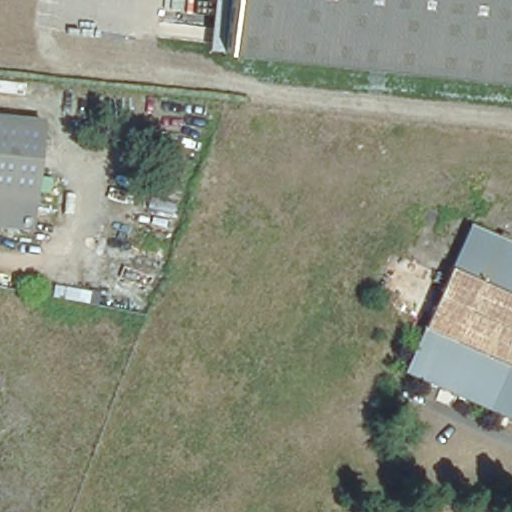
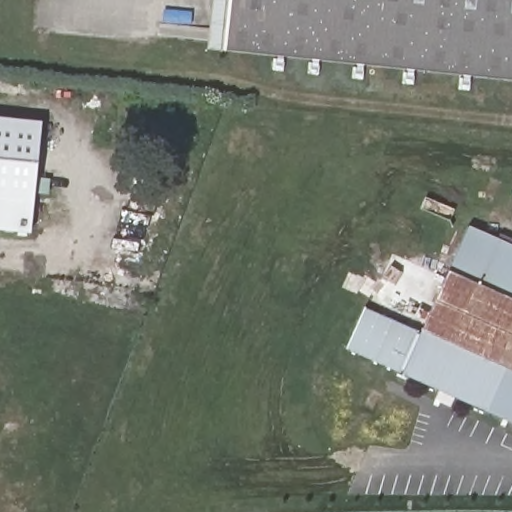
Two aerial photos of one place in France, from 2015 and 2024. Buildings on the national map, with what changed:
unchanged [(202,43),(207,0),(222,0),(217,45),(202,43)]
unchanged [(217,45),(222,0),(512,0),(512,76),(217,45)]
unchanged [(30,239),(0,236),(0,126),(41,130),(30,239)]
unchanged [(512,249),(512,424),(405,375),(472,230),(512,249)]
new [(424,333),(405,375),(346,348),(365,306),(424,333)]

